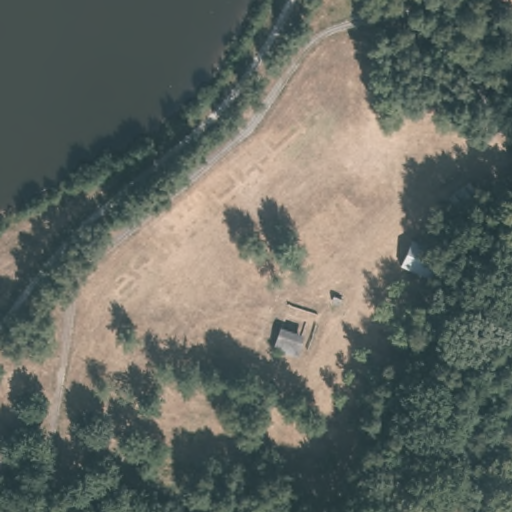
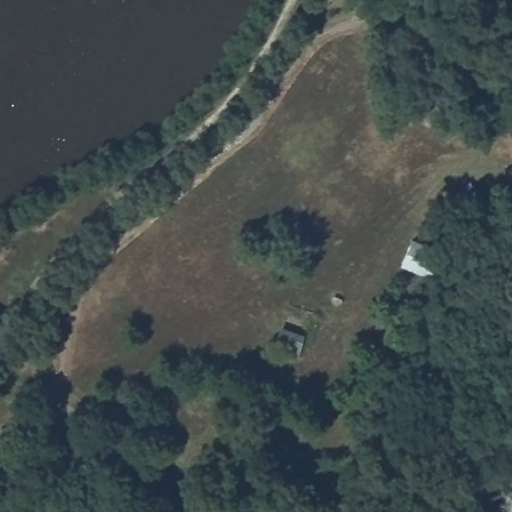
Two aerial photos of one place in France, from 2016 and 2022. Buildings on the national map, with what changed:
unchanged [(306,335),(298,359),(275,349),(282,327),(306,335)]

